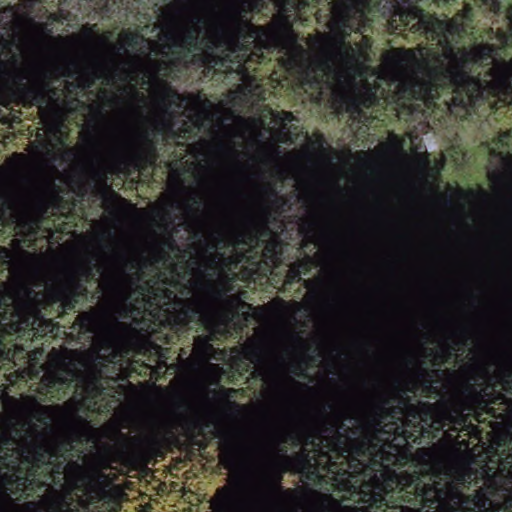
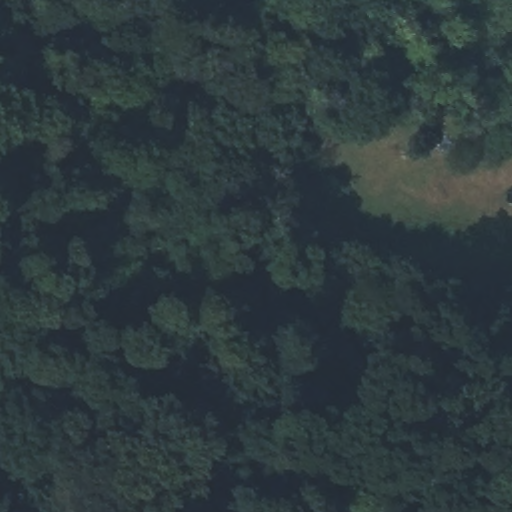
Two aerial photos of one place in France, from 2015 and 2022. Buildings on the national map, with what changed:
[]

